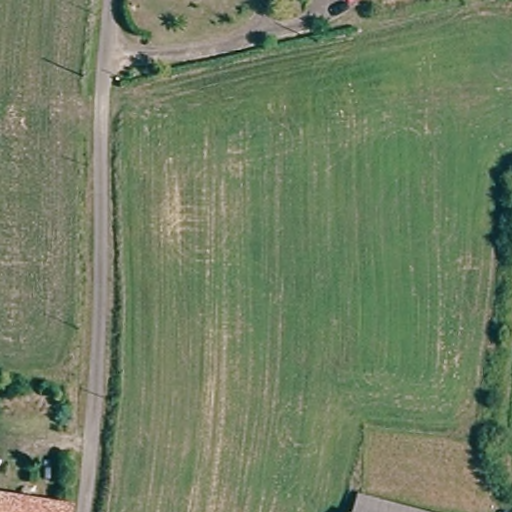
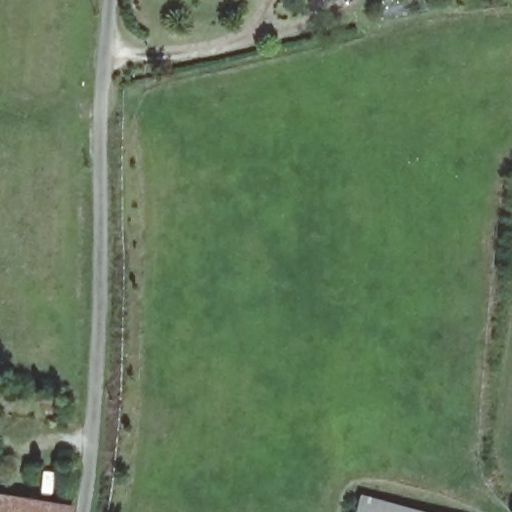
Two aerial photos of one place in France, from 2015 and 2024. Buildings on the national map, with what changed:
unchanged [(418,512),(355,512),(359,496),(418,510),(418,512)]
unchanged [(69,512),(0,512),(0,499),(58,510),(69,511),(69,512)]
unchanged [(424,512),(418,512),(418,510),(424,512)]
unchanged [(496,512),(489,512),(489,510),(496,512)]

